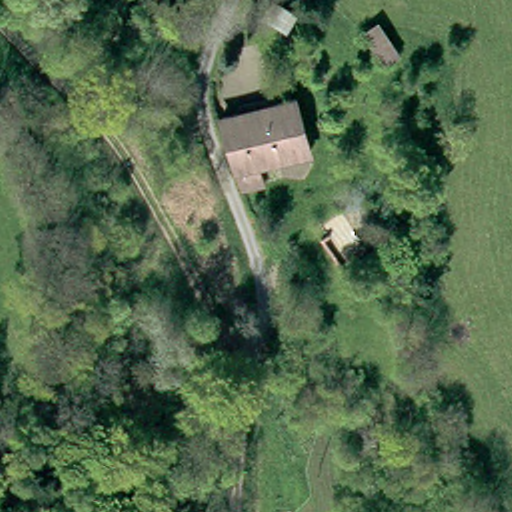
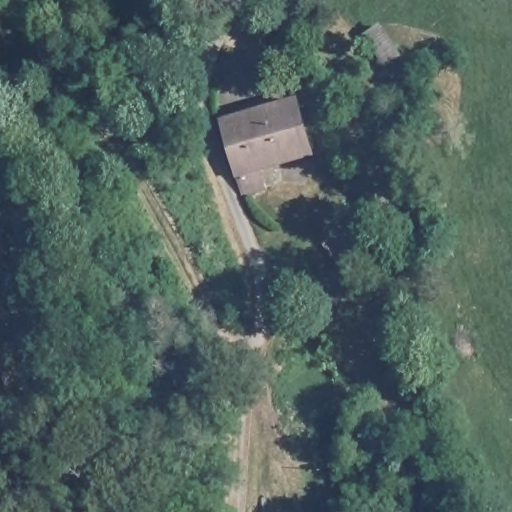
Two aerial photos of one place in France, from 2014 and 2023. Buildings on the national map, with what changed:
unchanged [(378,70),(356,35),(377,20),(399,54),(378,70)]
unchanged [(289,85),(314,165),(264,182),(266,193),(243,200),(218,109),(289,85)]

